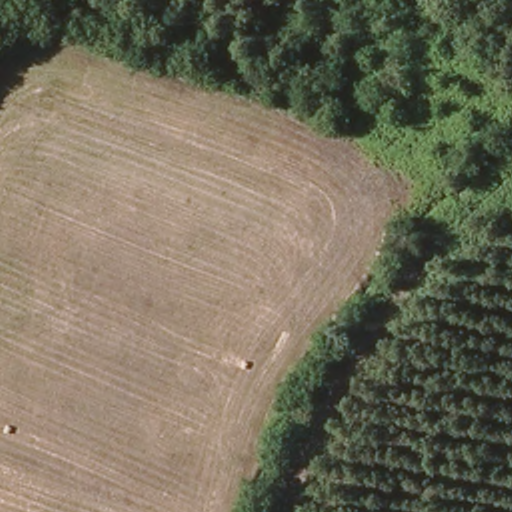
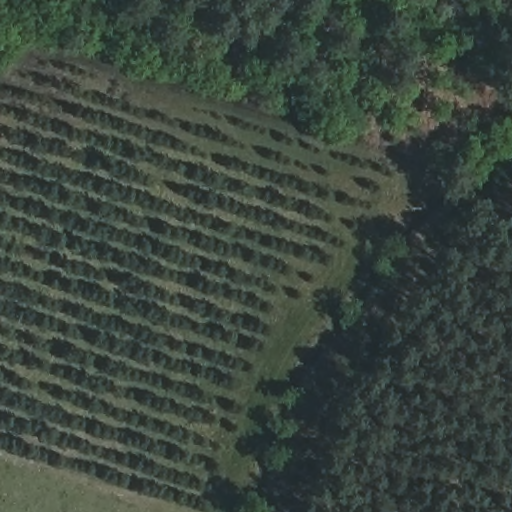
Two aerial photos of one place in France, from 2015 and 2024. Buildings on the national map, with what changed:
[]

